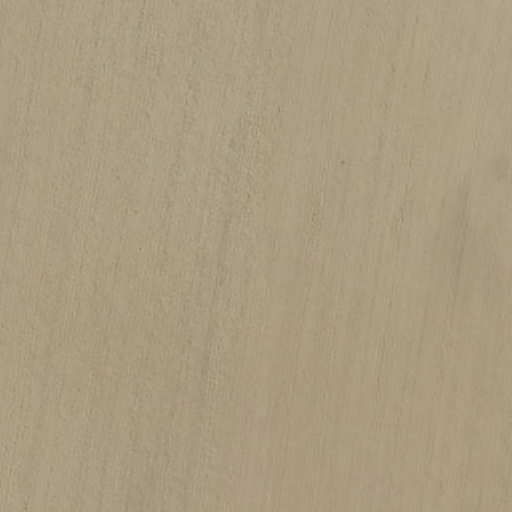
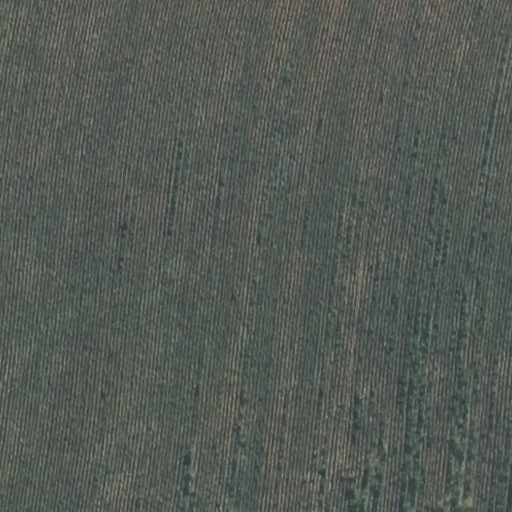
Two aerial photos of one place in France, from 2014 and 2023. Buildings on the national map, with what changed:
[]

